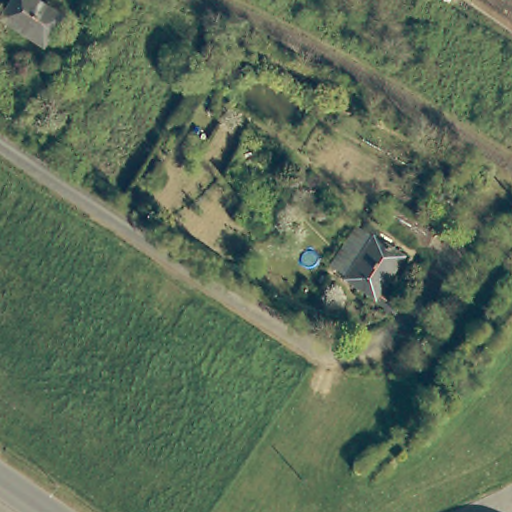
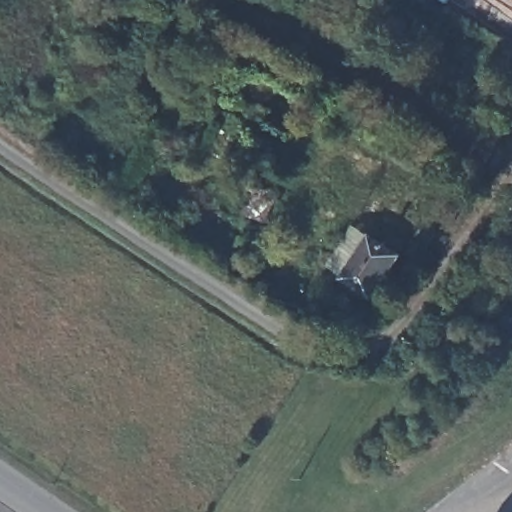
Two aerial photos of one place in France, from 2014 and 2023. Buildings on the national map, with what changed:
demolished [(0,23),(0,21),(14,0),(27,0),(63,23),(44,52),(0,23)]
unchanged [(371,300),(342,279),(371,238),(399,257),(371,300)]

